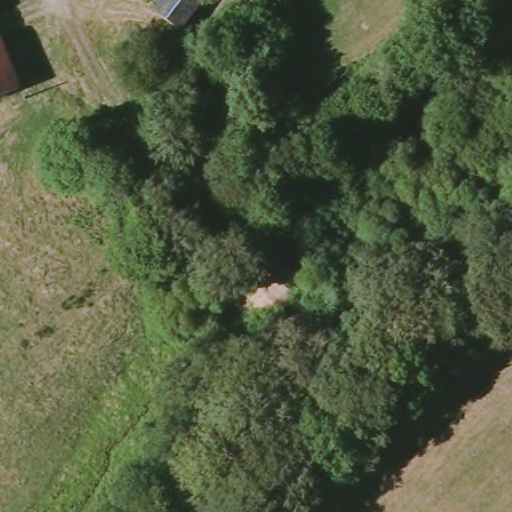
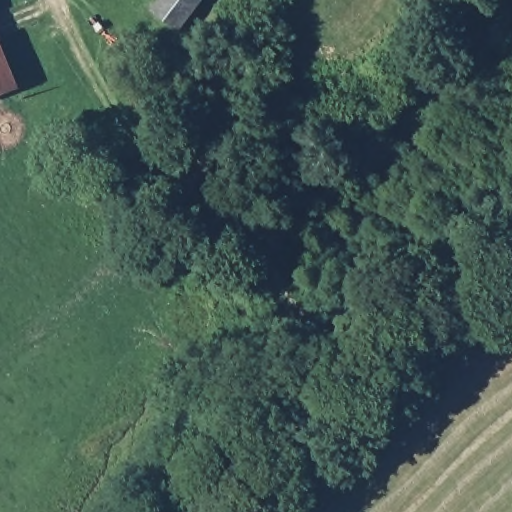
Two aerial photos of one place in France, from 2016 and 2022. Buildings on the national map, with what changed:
unchanged [(158,18),(166,0),(202,0),(189,31),(158,18)]
unchanged [(0,101),(0,39),(23,91),(0,101)]

